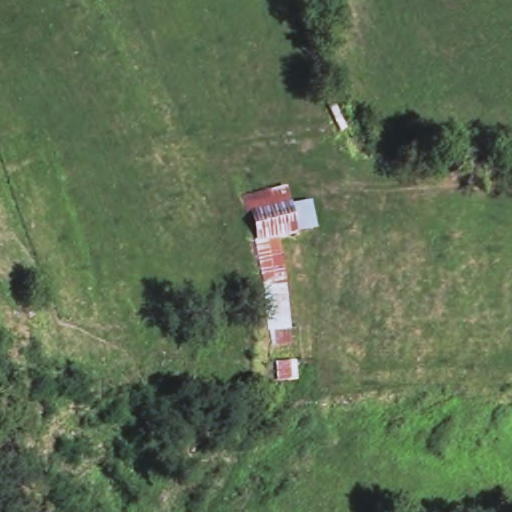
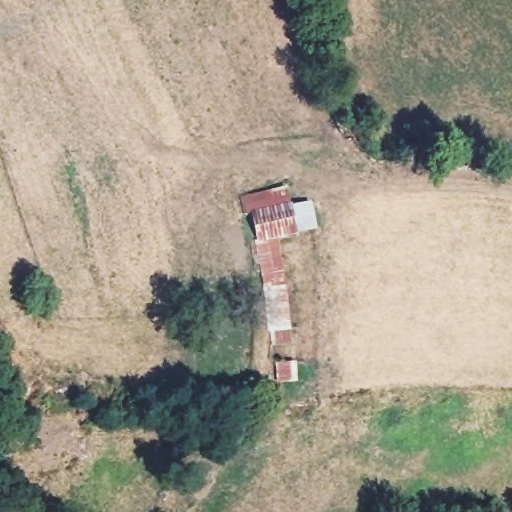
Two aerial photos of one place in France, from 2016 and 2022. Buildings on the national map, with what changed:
unchanged [(300,234),(279,237),(286,282),(292,318),(266,329),(241,192),(284,182),(300,234)]

